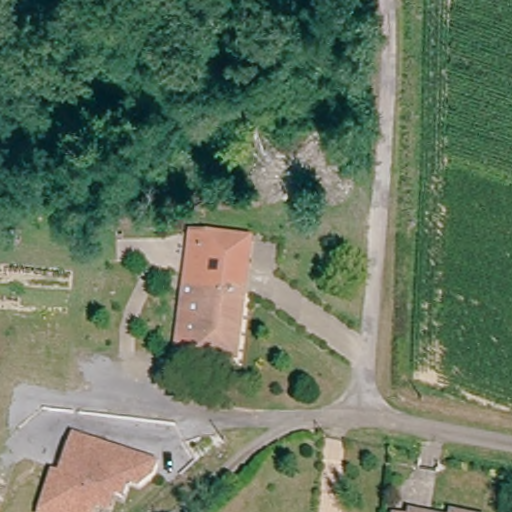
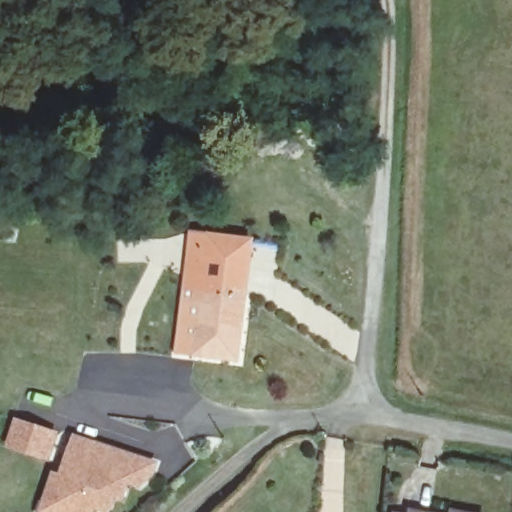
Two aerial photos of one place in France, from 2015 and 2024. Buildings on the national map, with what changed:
unchanged [(195,237),(234,243),(253,245),(252,253),(229,250),(227,262),(200,259),(197,286),(189,285),(194,243),(195,237)]
unchanged [(238,363),(180,356),(189,285),(197,286),(200,259),(227,262),(229,250),(252,253),(238,363)]
new [(14,418),(59,433),(49,462),(4,448),(14,418)]
unchanged [(52,470),(59,473),(74,434),(159,461),(154,476),(139,487),(129,485),(126,499),(116,497),(110,512),(96,512),(95,512),(39,512),(52,470)]

